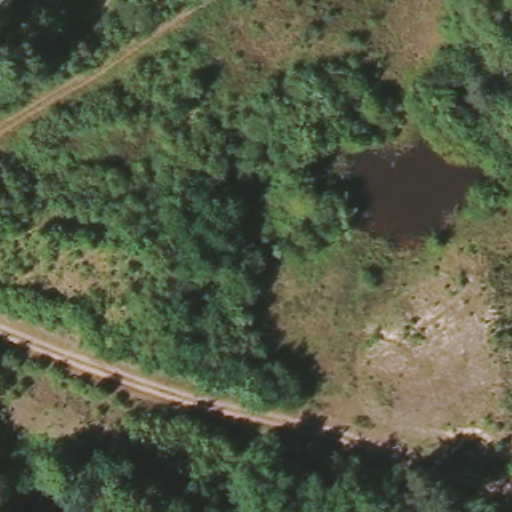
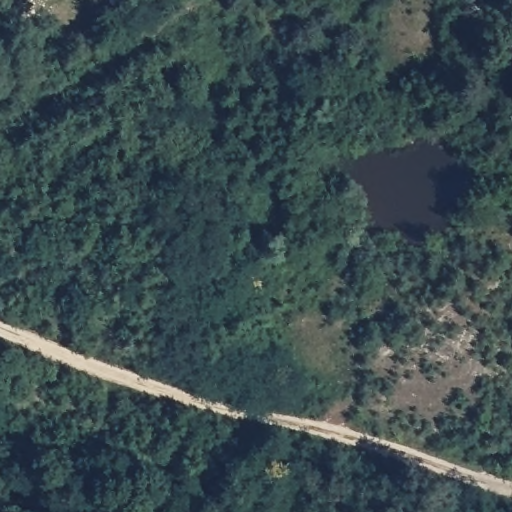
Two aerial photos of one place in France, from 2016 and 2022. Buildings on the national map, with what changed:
unchanged [(323,470),(339,480),(328,496),(314,487),(323,470)]

